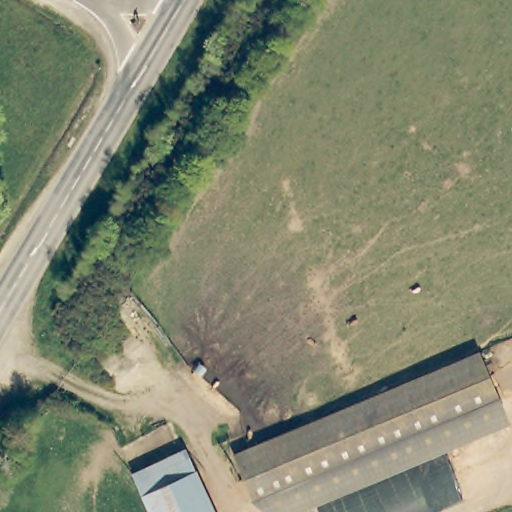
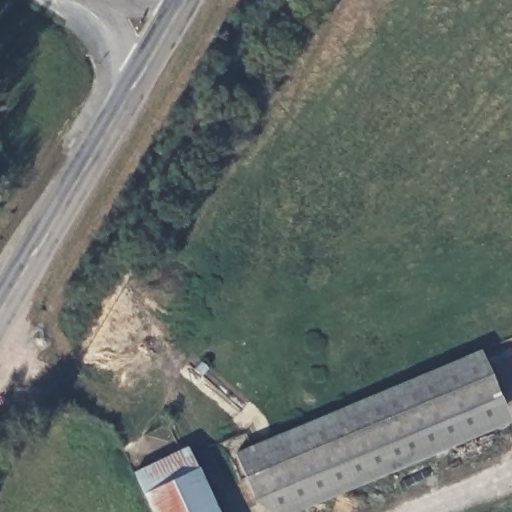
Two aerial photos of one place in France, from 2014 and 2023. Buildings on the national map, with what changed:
unchanged [(480,354),(510,427),(308,512),(263,512),(234,457),(480,354)]
unchanged [(214,512),(151,512),(133,473),(186,451),(214,512)]

